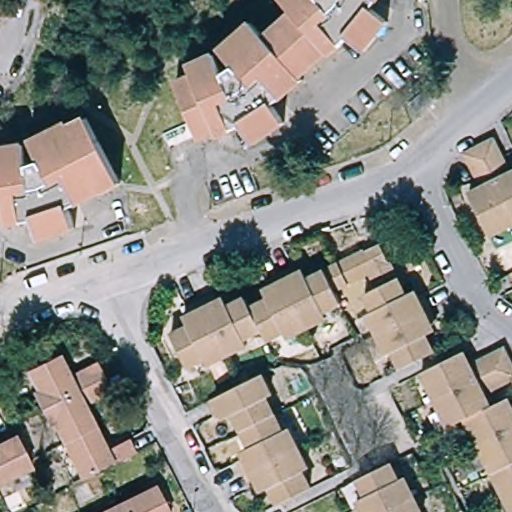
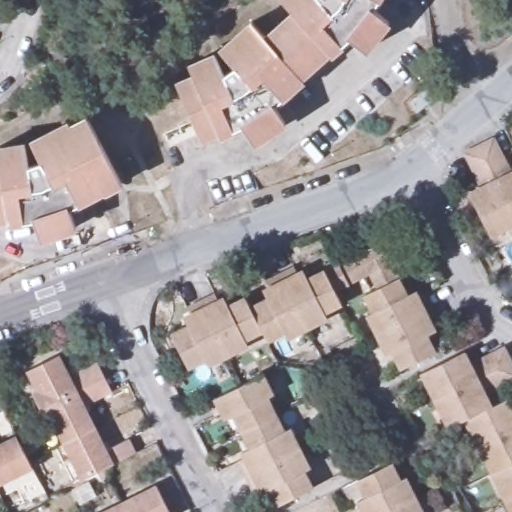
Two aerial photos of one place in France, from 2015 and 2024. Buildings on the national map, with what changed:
unchanged [(277,103),(274,99),(266,106),(279,125),(250,145),(235,123),(227,127),(229,133),(214,140),(213,135),(196,142),(173,87),(189,80),(186,70),(211,59),(221,79),(232,72),(217,56),(247,27),(260,42),(287,18),(275,3),(279,0),(312,0),(312,1),(312,0),(370,0),(364,9),(382,23),(360,51),(339,36),(332,43),(336,48),(323,60),(320,57),(295,79),(297,83),(277,103)]
unchanged [(370,0),(374,0),(373,1),(370,0)]
unchanged [(419,120),(410,110),(417,103),(427,94),(435,105),(419,120)]
unchanged [(72,207),(70,203),(61,206),(70,230),(37,243),(29,217),(18,220),(18,226),(5,228),(3,222),(0,222),(0,152),(20,149),(25,169),(37,164),(30,145),(65,126),(68,131),(83,122),(115,186),(72,207)]
unchanged [(491,144),(509,177),(512,175),(512,218),(478,151),(491,144)]
unchanged [(512,227),(489,240),(467,199),(482,191),(464,159),(478,151),(512,218),(512,227)]
unchanged [(367,274),(346,285),(337,264),(365,250),(358,237),(373,229),(380,242),(391,263),(367,274)]
unchanged [(408,302),(422,296),(428,310),(375,336),(367,319),(372,316),(363,295),(374,290),(367,274),(391,263),(408,302)]
unchanged [(334,291),(339,303),(323,311),(326,316),(305,327),(279,275),(292,269),(299,282),(337,264),(346,285),(334,291)]
unchanged [(282,338),(279,332),(263,339),(258,329),(248,307),(272,296),(265,283),(279,275),(305,327),(282,338)]
unchanged [(213,295),(219,308),(242,297),(248,307),(258,329),(241,339),(244,346),(225,355),(199,302),(213,295)]
unchanged [(225,355),(203,365),(200,358),(183,368),(167,334),(190,323),(183,309),(199,302),(225,355)]
unchanged [(428,310),(435,327),(424,332),(434,356),(399,372),(391,354),(385,358),(375,336),(428,310)]
unchanged [(436,398),(424,374),(464,355),(469,365),(501,349),(508,363),(436,398)]
unchanged [(48,414),(30,378),(58,362),(70,383),(93,372),(100,385),(48,414)]
unchanged [(512,376),(482,391),(490,407),(467,418),(450,426),(436,398),(508,363),(512,371),(512,376)]
unchanged [(243,432),(234,411),(217,417),(210,403),(262,377),(271,398),(267,401),(275,417),(243,432)]
unchanged [(62,441),(48,414),(100,385),(107,398),(85,409),(94,426),(62,441)]
unchanged [(512,410),(512,429),(480,445),(467,418),(490,407),(506,399),(512,410)]
unchanged [(281,431),(287,429),(297,449),(246,475),(239,460),(253,453),(243,432),(275,417),(281,431)]
unchanged [(106,450),(128,439),(136,455),(82,483),(62,441),(94,426),(106,450)]
unchanged [(512,464),(494,473),(480,445),(512,429),(512,464)]
unchanged [(15,440),(30,469),(0,484),(0,447),(15,440)]
unchanged [(297,449),(308,471),(305,473),(311,489),(280,506),(268,482),(253,489),(246,475),(297,449)]
unchanged [(381,512),(352,512),(350,509),(364,502),(354,480),(386,462),(394,478),(398,476),(409,498),(381,512)]
unchanged [(512,464),(512,498),(507,501),(494,473),(512,464)]
unchanged [(150,488),(163,512),(115,512),(112,507),(150,488)]
unchanged [(417,512),(381,512),(409,498),(417,512)]
unchanged [(512,498),(512,510),(507,501),(512,498)]
unchanged [(115,512),(103,512),(112,507),(115,512)]

